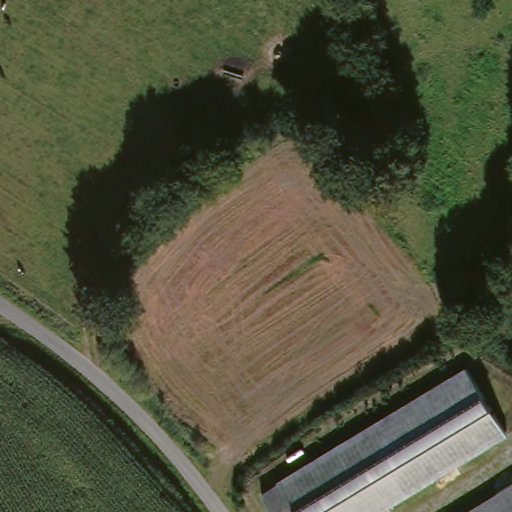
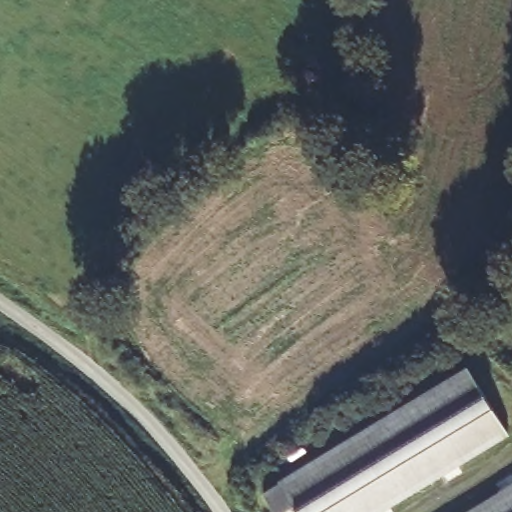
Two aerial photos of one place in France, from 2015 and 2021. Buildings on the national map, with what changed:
unchanged [(505,435),(373,512),(297,512),(291,503),(275,512),(274,512),(263,491),(467,365),(505,435)]
unchanged [(512,483),(512,512),(465,512),(512,483)]

